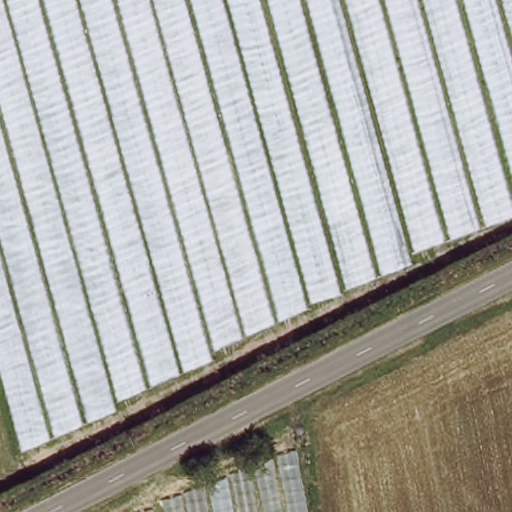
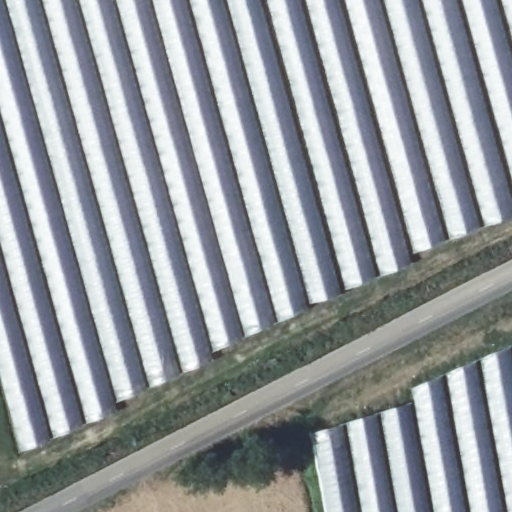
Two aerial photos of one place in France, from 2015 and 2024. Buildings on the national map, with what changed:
unchanged [(512,214),(25,452),(0,361),(0,0),(512,0),(512,214)]
new [(512,512),(433,512),(411,390),(512,346),(512,512)]
new [(326,512),(312,436),(413,402),(433,512),(326,512)]

